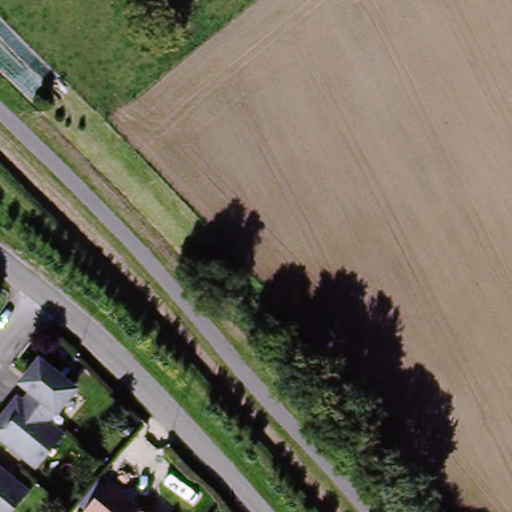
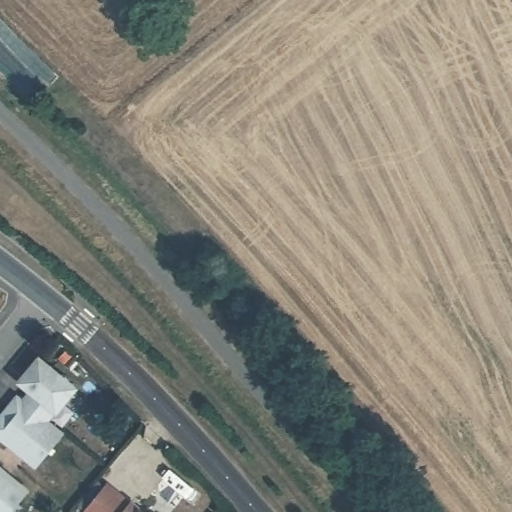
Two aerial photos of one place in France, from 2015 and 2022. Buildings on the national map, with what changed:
unchanged [(74,392),(46,426),(60,438),(34,472),(0,444),(0,415),(5,409),(10,414),(32,387),(22,380),(37,362),(74,392)]
unchanged [(31,495),(17,512),(0,512),(0,470),(31,495)]
unchanged [(144,512),(99,512),(115,491),(144,512)]

